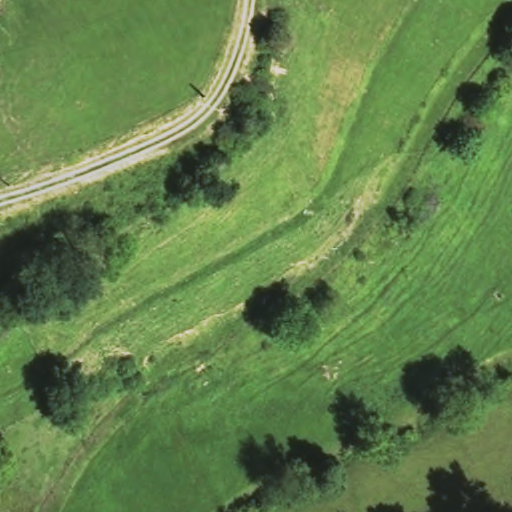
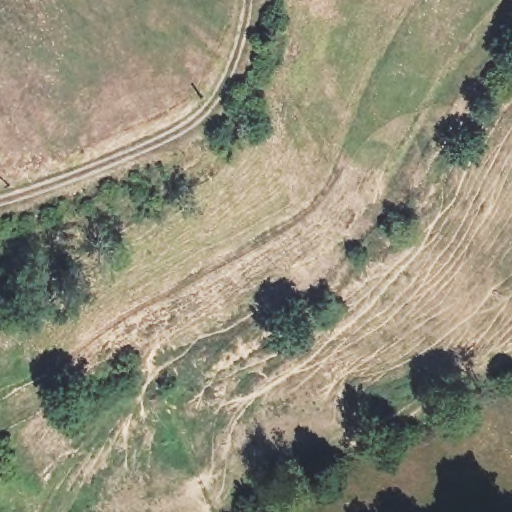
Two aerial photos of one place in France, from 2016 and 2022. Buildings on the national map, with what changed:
[]

